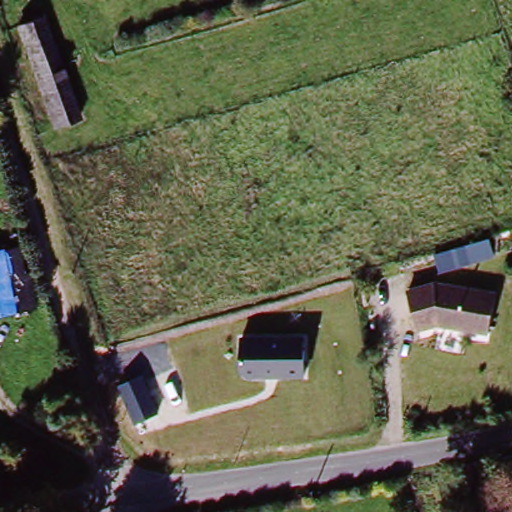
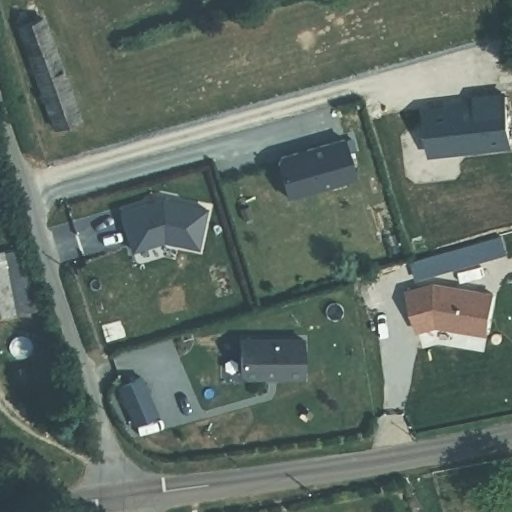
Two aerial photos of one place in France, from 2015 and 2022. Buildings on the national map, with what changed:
unchanged [(46,124),(11,13),(40,3),(75,115),(46,124)]
new [(480,104),(478,98),(507,95),(512,133),(512,146),(434,155),(428,111),(480,104)]
new [(285,158),(347,140),(358,179),(292,198),(291,199),(281,165),(285,158)]
new [(167,202),(210,211),(202,250),(169,243),(137,253),(125,215),(167,202)]
unchanged [(0,307),(0,266),(9,305),(0,307)]
unchanged [(489,294),(482,333),(430,325),(412,329),(401,289),(430,284),(489,294)]
unchanged [(240,337),(305,336),(305,376),(242,380),(240,337)]
unchanged [(117,387),(140,377),(157,415),(133,425),(117,387)]

